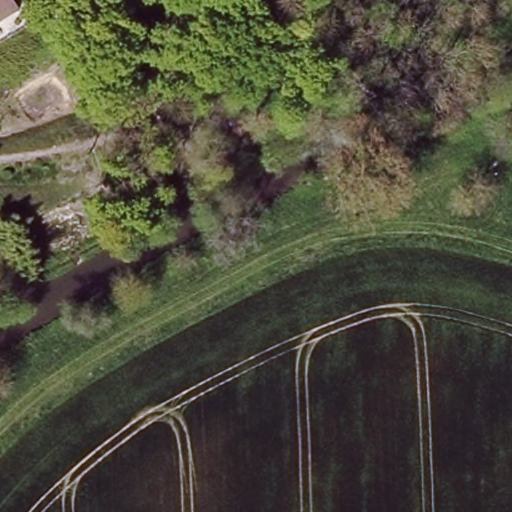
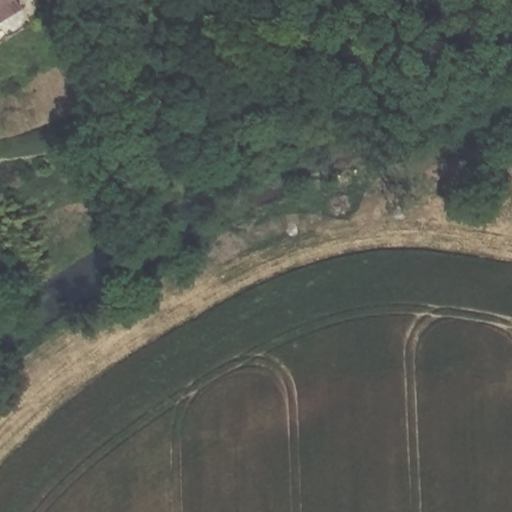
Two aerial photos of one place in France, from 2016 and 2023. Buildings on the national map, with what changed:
unchanged [(20,0),(25,9),(0,23),(0,0),(20,0)]

